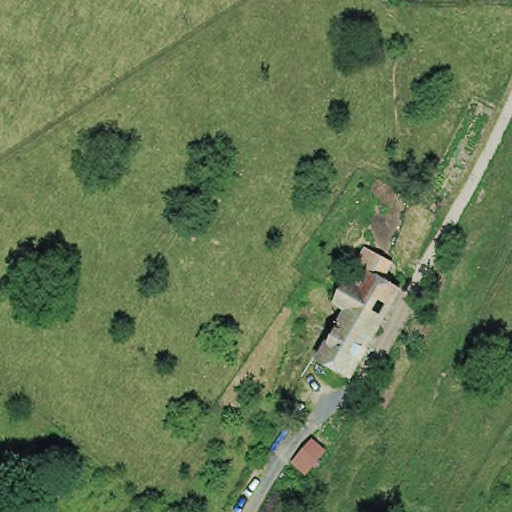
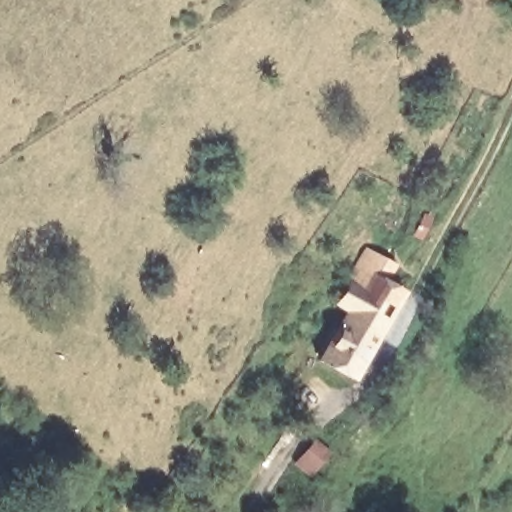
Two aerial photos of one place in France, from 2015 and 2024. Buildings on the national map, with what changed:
unchanged [(321,352),(353,300),(350,297),(341,292),(350,281),(353,275),(363,280),(375,263),(407,282),(395,300),(357,364),(352,371),(326,355),(321,352)]

